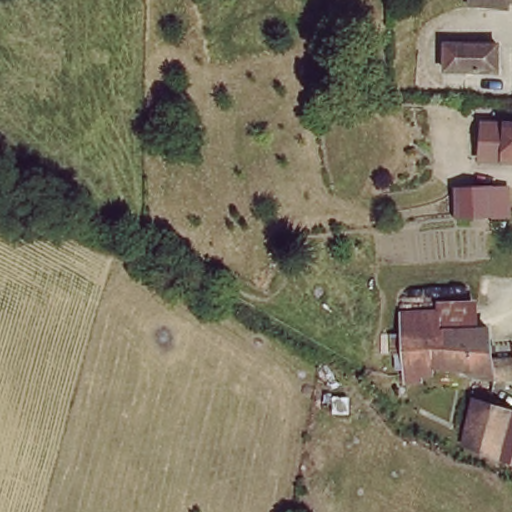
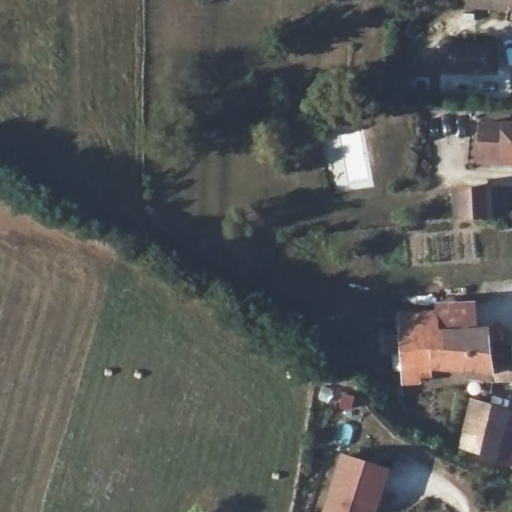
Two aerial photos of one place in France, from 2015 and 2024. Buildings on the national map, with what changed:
unchanged [(487,0),(512,0),(512,3),(487,0)]
unchanged [(457,51),(489,50),(490,75),(458,75),(457,51)]
unchanged [(482,159),(484,125),(512,126),(512,162),(482,159)]
unchanged [(460,197),(495,197),(510,197),(510,221),(495,221),(461,222),(460,197)]
unchanged [(434,332),(455,333),(485,330),(487,361),(511,361),(511,373),(414,372),(414,385),(399,385),(399,315),(432,314),(434,332)]
unchanged [(470,398),(509,407),(502,442),(512,445),(509,458),(459,445),(470,398)]
new [(391,467),(377,512),(322,512),(341,453),(391,467)]

